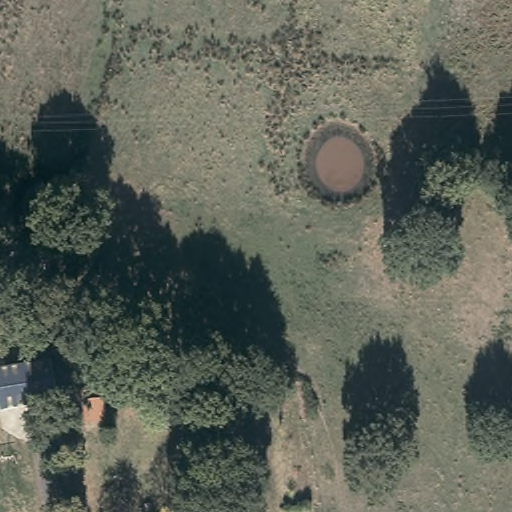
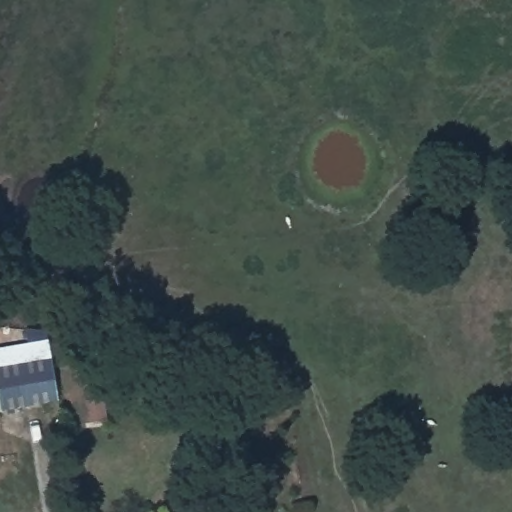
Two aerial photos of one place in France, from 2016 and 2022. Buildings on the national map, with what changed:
unchanged [(60,397),(1,406),(0,398),(0,371),(52,363),(60,397)]

